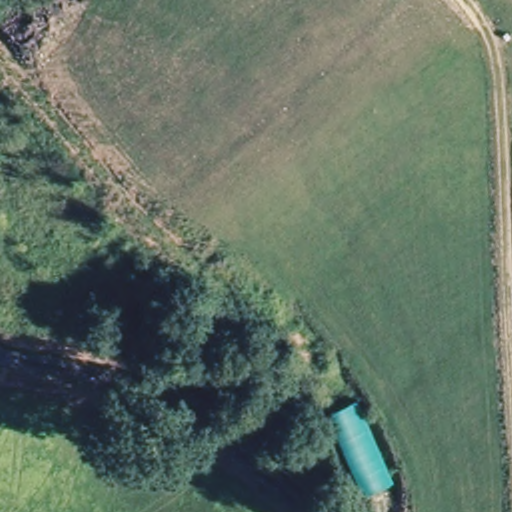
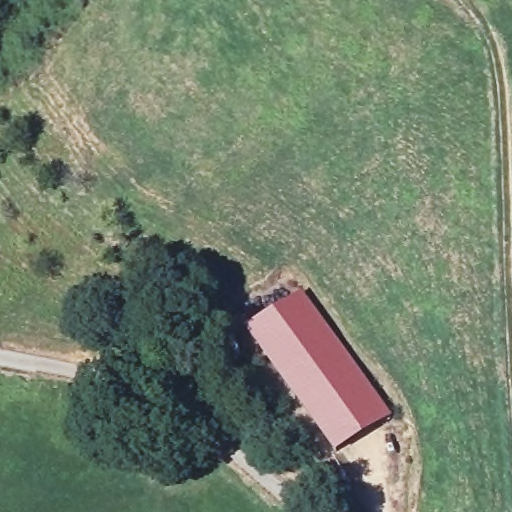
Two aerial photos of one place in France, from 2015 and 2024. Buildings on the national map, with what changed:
new [(392,416),(337,456),(245,331),(302,291),(392,416)]
demolished [(393,487),(360,501),(328,417),(358,403),(393,487)]

